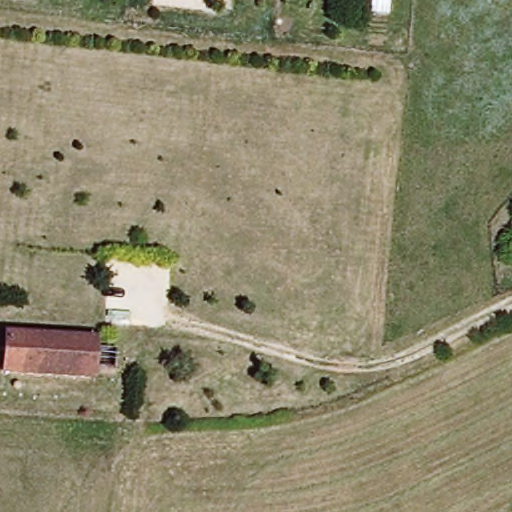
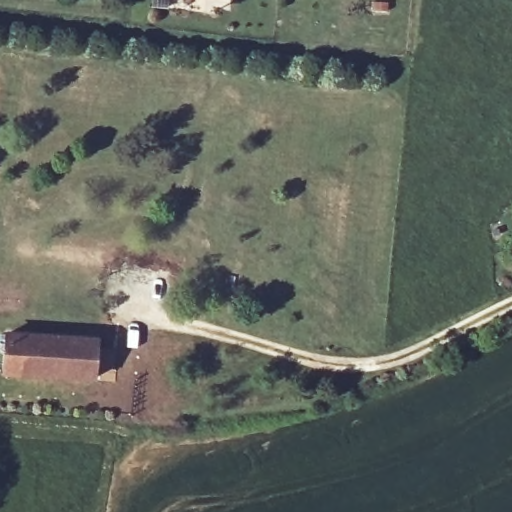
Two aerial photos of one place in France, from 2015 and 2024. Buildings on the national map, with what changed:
unchanged [(39,343),(97,348),(93,385),(5,376),(9,340),(39,343)]

